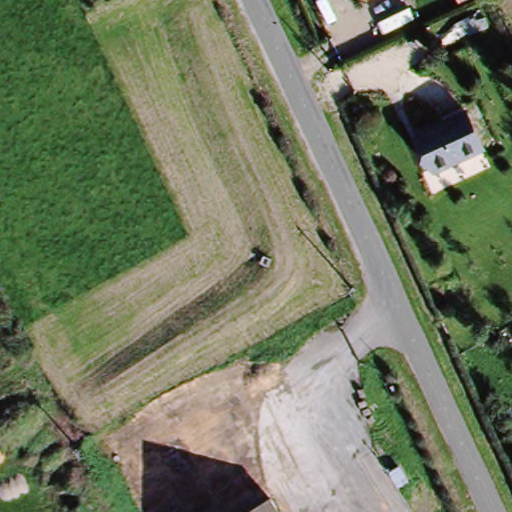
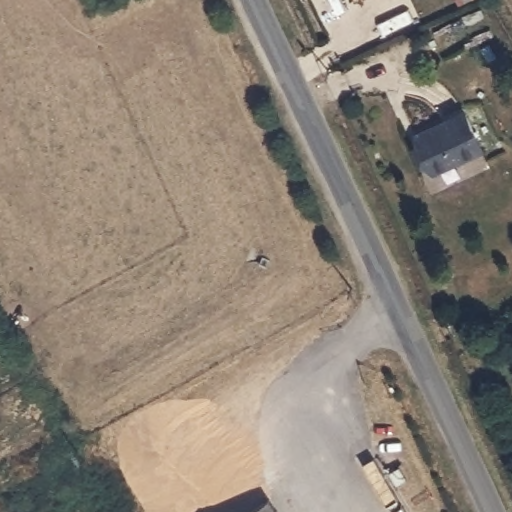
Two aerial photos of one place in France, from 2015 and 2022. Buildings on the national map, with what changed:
unchanged [(430,171),(417,141),(469,117),(483,150),(456,164),(454,159),(430,171)]
unchanged [(274,512),(250,512),(267,502),(274,512)]

